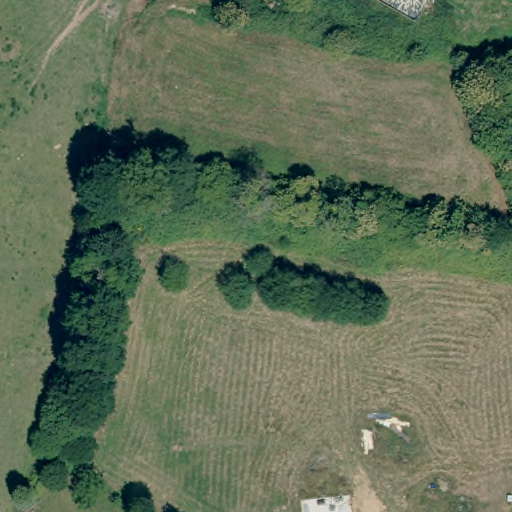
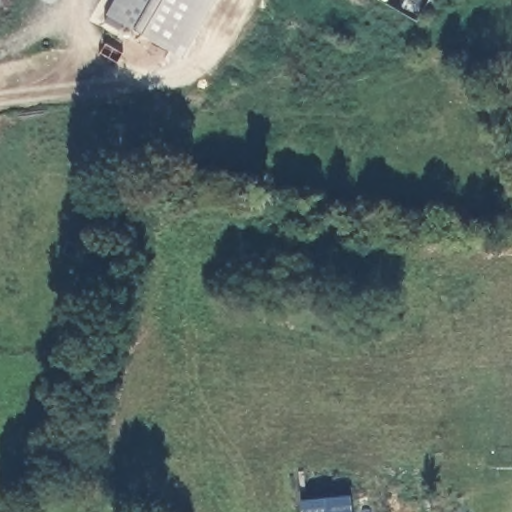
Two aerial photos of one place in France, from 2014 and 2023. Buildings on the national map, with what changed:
new [(115,0),(216,0),(182,60),(107,16),(115,0)]
new [(350,497),(352,512),(301,512),(300,502),(350,497)]

